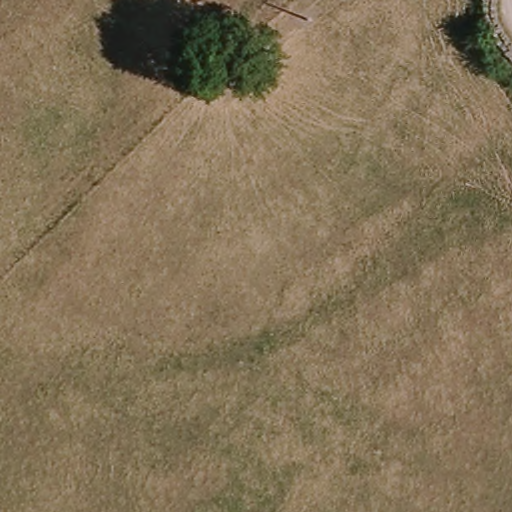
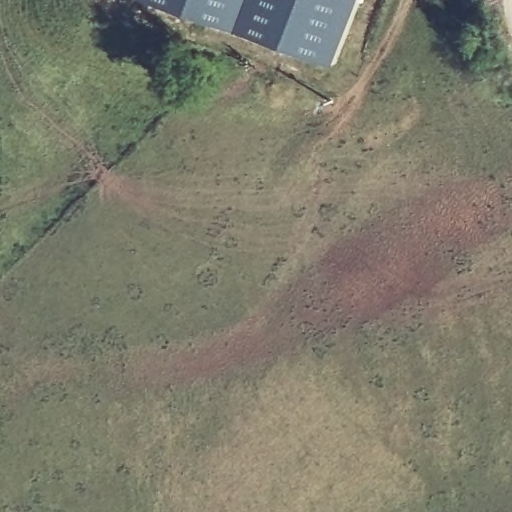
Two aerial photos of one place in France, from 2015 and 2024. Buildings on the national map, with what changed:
new [(157,0),(359,0),(336,64),(157,0)]

